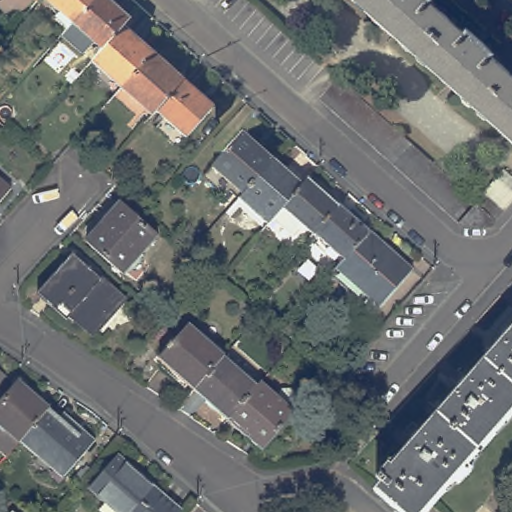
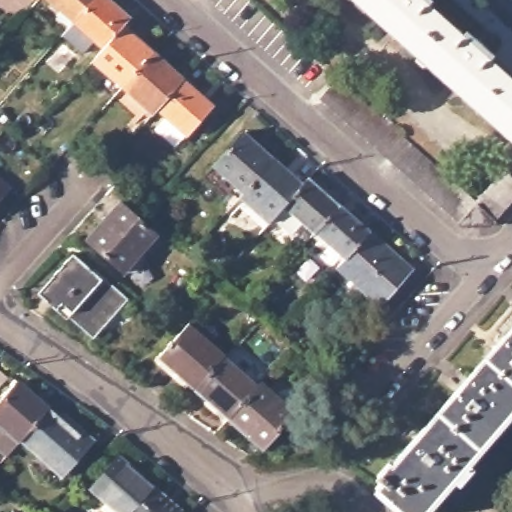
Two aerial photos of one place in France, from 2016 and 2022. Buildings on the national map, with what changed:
unchanged [(96,0),(77,21),(52,0),(96,0)]
unchanged [(96,0),(112,0),(132,18),(126,24),(105,47),(77,21),(96,0)]
unchanged [(424,0),(459,31),(461,28),(488,53),(485,55),(512,79),(512,141),(354,0),(424,0)]
unchanged [(158,51),(127,85),(96,58),(105,47),(126,24),(158,51)]
unchanged [(127,85),(158,51),(188,78),(186,79),(160,109),(156,113),(127,85)]
unchanged [(323,95),(340,75),(479,198),(508,164),(512,168),(512,201),(499,215),(495,220),(472,222),(464,223),(460,219),(323,95)]
unchanged [(186,79),(216,106),(189,135),(160,109),(186,79)]
unchanged [(214,159),(244,126),(274,154),(245,187),(214,159)]
unchanged [(277,211),(272,217),(243,190),(245,187),(274,154),(304,180),(277,211)]
unchanged [(304,180),(311,173),(342,199),(318,227),(305,216),(295,228),(277,211),(304,180)]
unchanged [(0,200),(0,180),(9,189),(0,200)]
unchanged [(318,227),(342,199),(372,226),(348,253),(318,227)]
unchanged [(128,271),(126,273),(89,239),(123,203),(159,235),(140,255),(153,267),(140,282),(128,271)]
unchanged [(416,264),(383,302),(339,264),(348,253),(372,226),(416,264)]
unchanged [(78,320),(79,319),(64,304),(59,309),(42,294),(77,255),(127,301),(96,337),(78,320)]
unchanged [(162,358),(193,324),(229,356),(225,359),(198,390),(162,358)]
unchanged [(377,486),(384,478),(381,474),(393,461),(396,464),(512,331),(512,408),(421,512),(405,512),(377,486)]
unchanged [(258,388),(232,417),(229,419),(198,390),(225,359),(258,388)]
unchanged [(1,384),(0,386),(0,373),(6,379),(1,384)]
unchanged [(19,442),(5,457),(0,452),(0,401),(18,381),(49,408),(21,439),(19,442)]
unchanged [(232,417),(258,388),(262,384),(279,399),(284,392),(290,392),(299,398),(300,407),(294,413),(295,414),(264,450),(250,437),(253,434),(232,417)]
unchanged [(58,464),(54,467),(41,455),(39,459),(22,444),(25,441),(21,439),(49,408),(59,418),(64,413),(69,422),(76,429),(79,427),(95,441),(66,473),(58,464)]
unchanged [(95,486),(123,454),(184,507),(179,512),(125,512),(95,486)]

